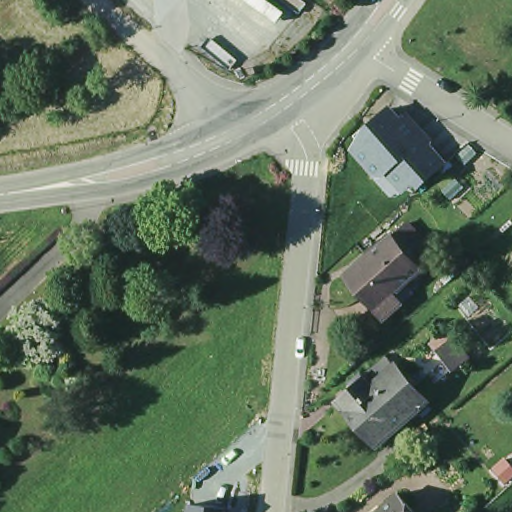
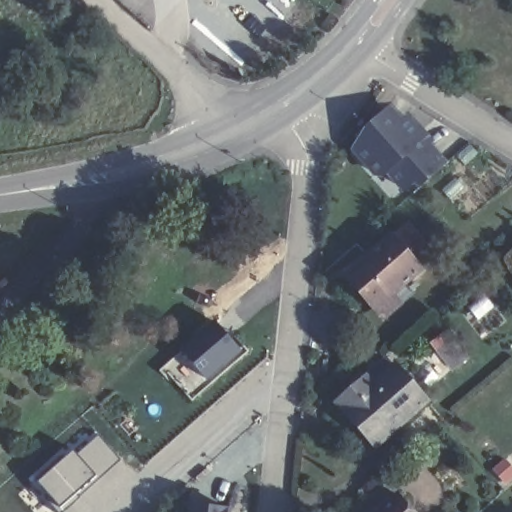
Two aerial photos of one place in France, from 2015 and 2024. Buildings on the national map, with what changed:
unchanged [(379,128),(374,122),(393,104),(405,118),(411,111),(425,127),(419,134),(427,143),(430,139),(449,159),(425,181),(407,162),(400,160),(390,170),(383,170),(360,145),(379,128)]
unchanged [(404,225),(426,250),(432,245),(440,254),(435,260),(419,274),(388,239),(404,225)]
unchanged [(383,323),(369,306),(344,277),(367,257),(362,253),(370,245),(374,250),(387,238),(388,239),(419,274),(420,274),(405,286),(413,295),(383,323)]
new [(219,318),(245,352),(188,404),(160,372),(219,318)]
unchanged [(423,403),(374,447),(338,403),(355,388),(365,379),(387,359),(392,365),(423,403)]
new [(122,462),(62,512),(27,512),(16,498),(60,457),(65,461),(98,432),(122,462)]
unchanged [(411,512),(390,512),(402,502),(411,512)]
unchanged [(187,507),(229,509),(229,512),(187,512),(187,507)]

